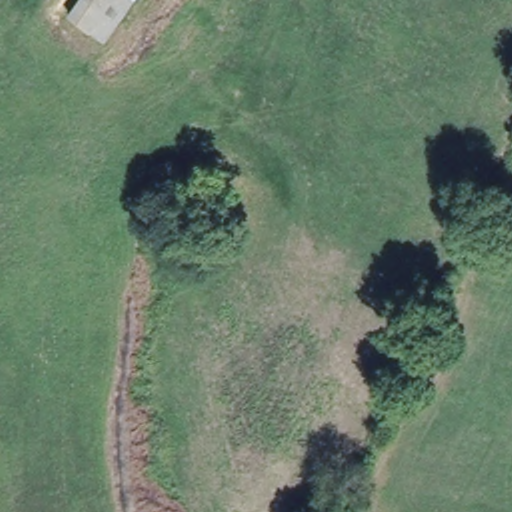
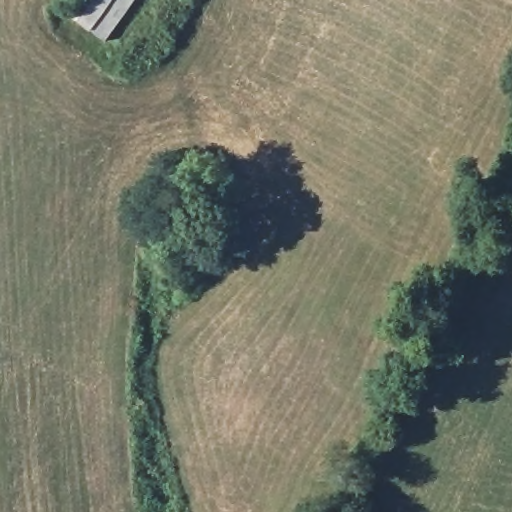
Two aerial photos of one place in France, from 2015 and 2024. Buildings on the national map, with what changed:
unchanged [(110,45),(64,19),(76,0),(137,0),(110,45)]

